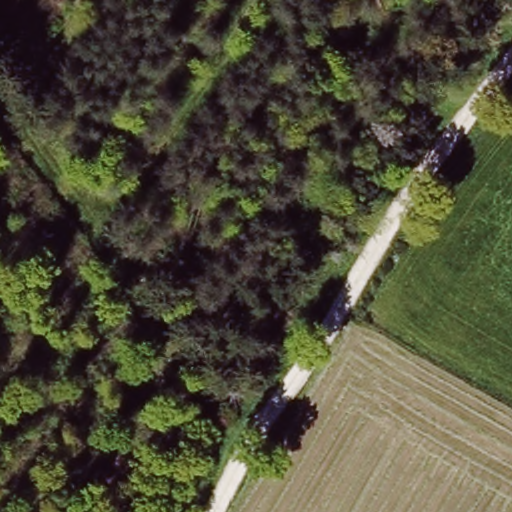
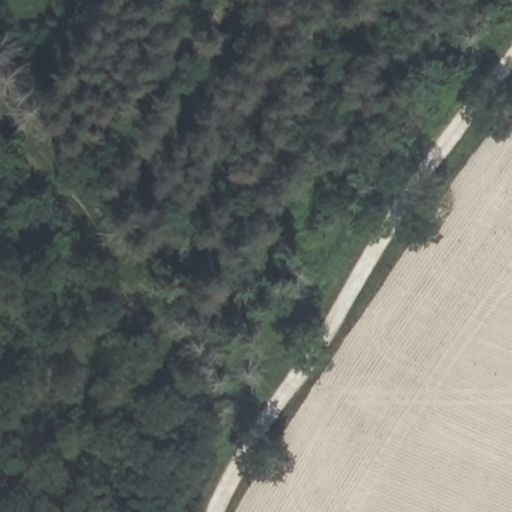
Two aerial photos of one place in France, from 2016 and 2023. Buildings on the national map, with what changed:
[]

